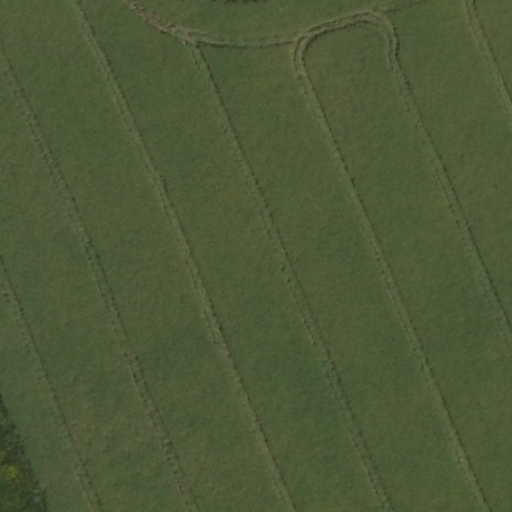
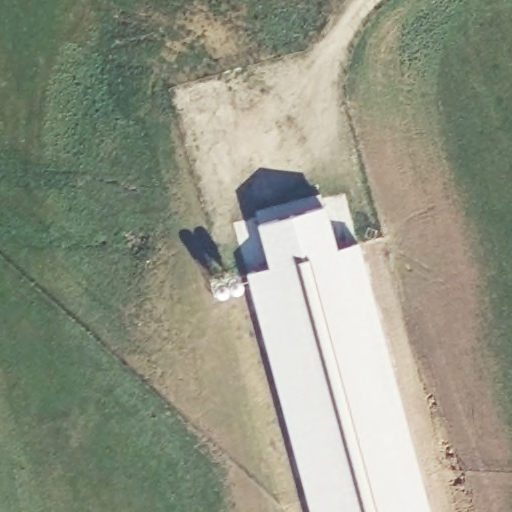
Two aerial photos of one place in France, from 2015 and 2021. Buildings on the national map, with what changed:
new [(332,253),(354,247),(426,512),(307,512),(243,277),(266,271),(246,211),(315,192),(332,253)]

